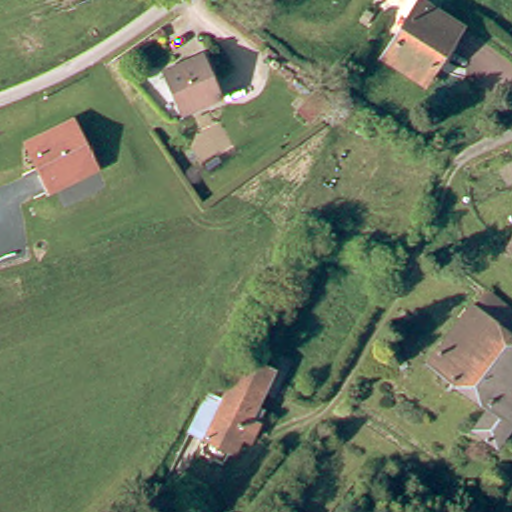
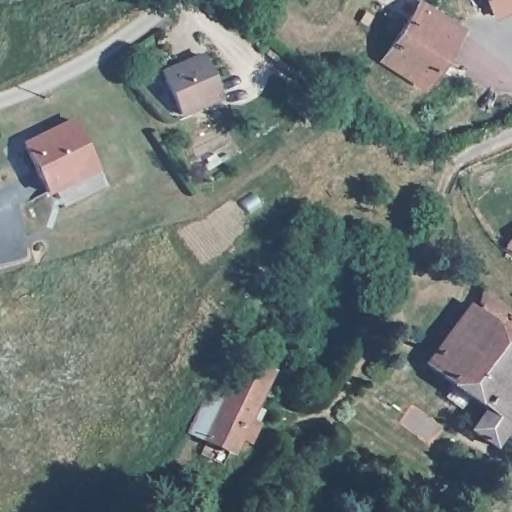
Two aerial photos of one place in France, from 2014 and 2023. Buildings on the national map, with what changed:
new [(485,0),(512,0),(512,11),(495,19),(485,0)]
unchanged [(460,27),(424,83),(383,56),(403,25),(395,20),(400,14),(407,19),(419,1),(460,27)]
unchanged [(156,69),(197,52),(215,95),(175,112),(156,69)]
unchanged [(315,95),(326,108),(308,124),(296,112),(315,95)]
unchanged [(76,123),(98,170),(49,194),(26,147),(76,123)]
unchanged [(512,249),(504,245),(512,232),(512,249)]
unchanged [(458,416),(437,399),(410,379),(468,305),(512,337),(512,419),(480,463),(478,463),(455,446),(462,437),(471,426),(458,416)]
unchanged [(197,389),(212,396),(235,350),(265,365),(271,354),(283,359),(265,394),(253,388),(240,415),(248,419),(238,440),(230,436),(223,450),(179,426),(182,419),(197,389)]

